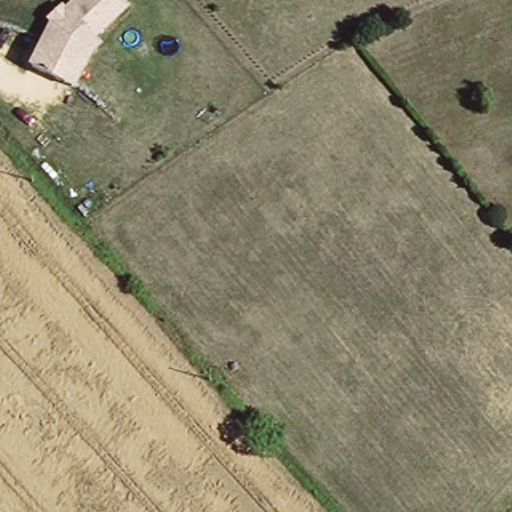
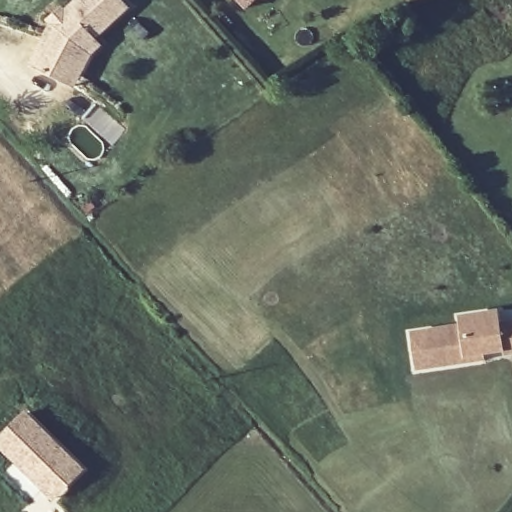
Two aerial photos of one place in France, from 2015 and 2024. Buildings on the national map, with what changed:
unchanged [(46,20),(64,6),(67,9),(77,0),(124,0),(131,9),(98,41),(104,46),(77,90),(32,65),(50,27),(46,20)]
demolished [(70,129),(88,149),(79,156),(92,173),(79,185),(47,147),(70,129)]
new [(460,324),(459,315),(501,310),(502,322),(512,320),(512,357),(506,358),(505,354),(486,356),(487,361),(415,370),(410,331),(460,324)]
new [(24,407),(86,469),(52,504),(0,451),(0,432),(24,407)]

